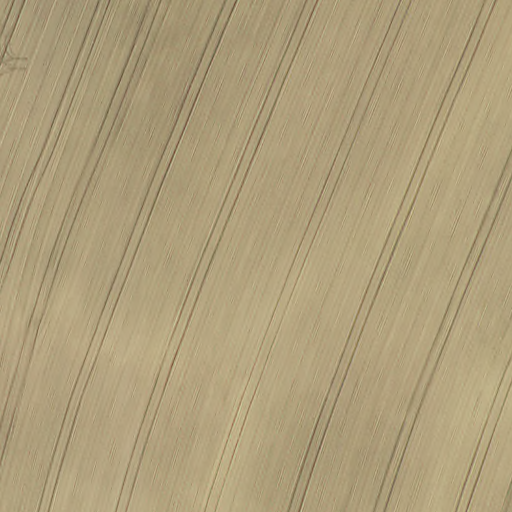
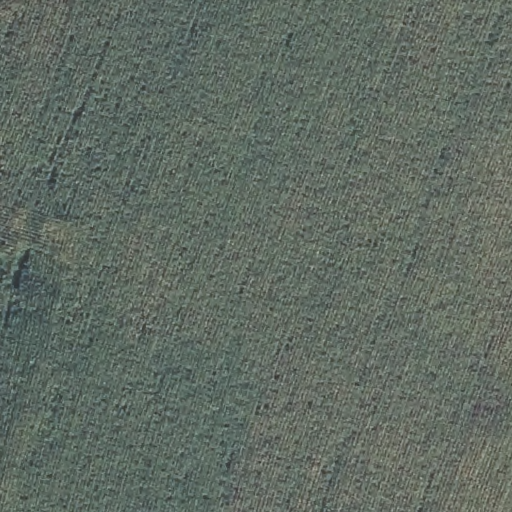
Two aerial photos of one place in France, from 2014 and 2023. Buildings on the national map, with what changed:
[]

